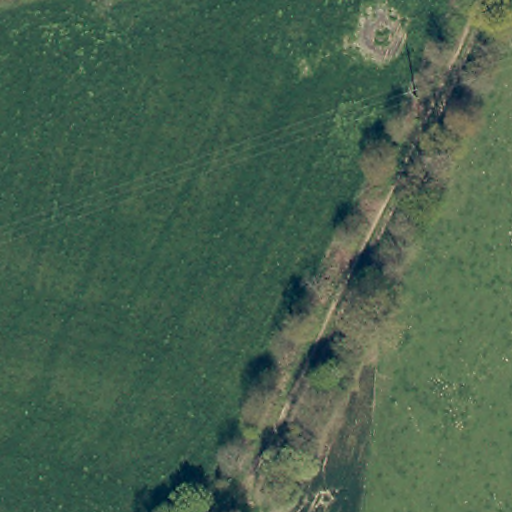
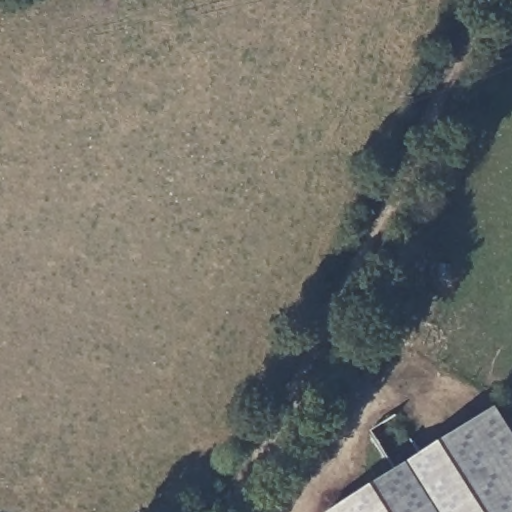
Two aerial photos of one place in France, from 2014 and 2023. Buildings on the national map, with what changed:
new [(512,512),(325,512),(499,404),(512,425),(512,512)]

